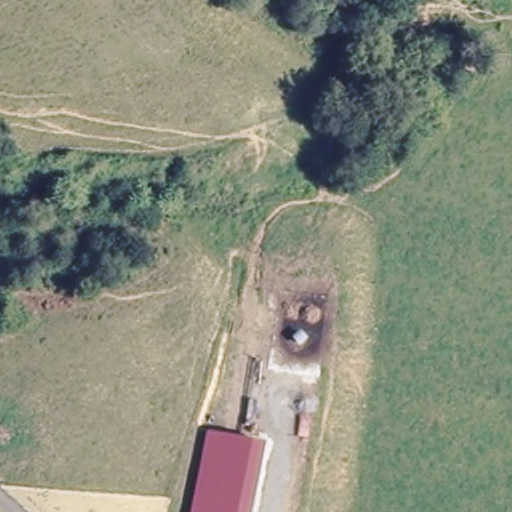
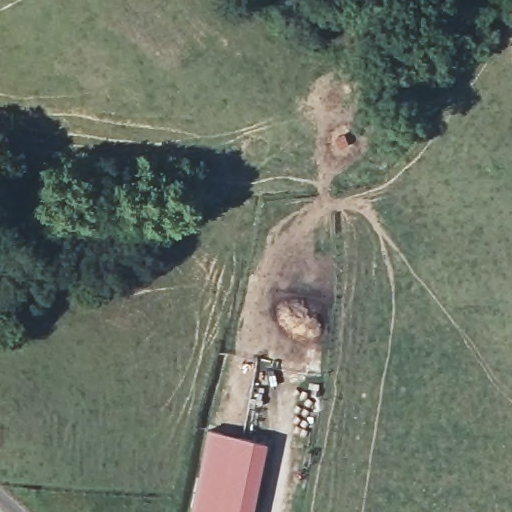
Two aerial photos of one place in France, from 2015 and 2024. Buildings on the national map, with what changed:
unchanged [(207,433),(267,444),(253,512),(192,512),(207,433)]

